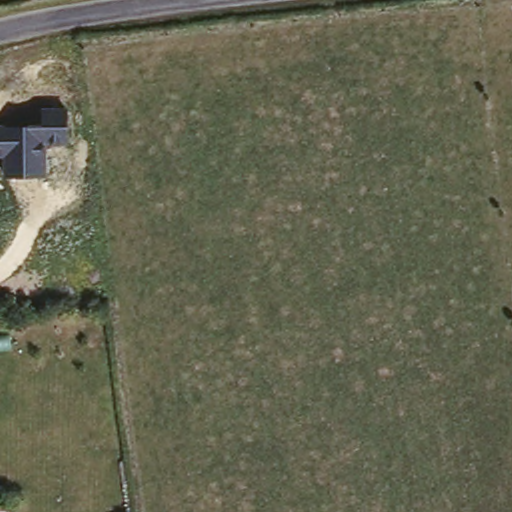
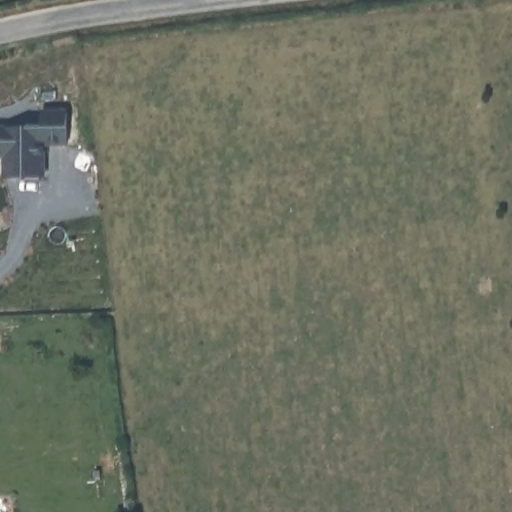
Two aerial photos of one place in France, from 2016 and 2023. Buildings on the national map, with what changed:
unchanged [(0,158),(0,124),(7,125),(38,124),(38,107),(65,107),(66,145),(46,144),(45,175),(4,176),(4,159),(0,158)]

